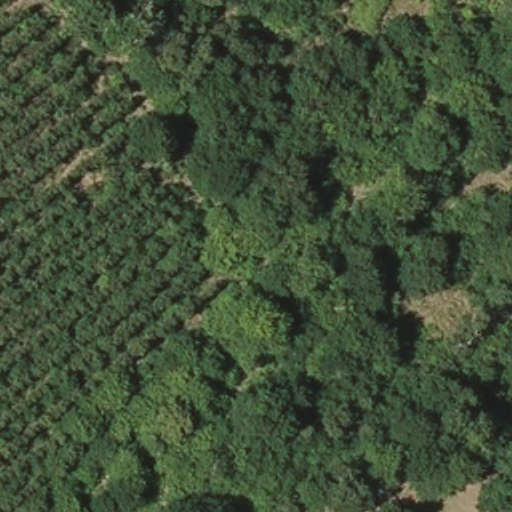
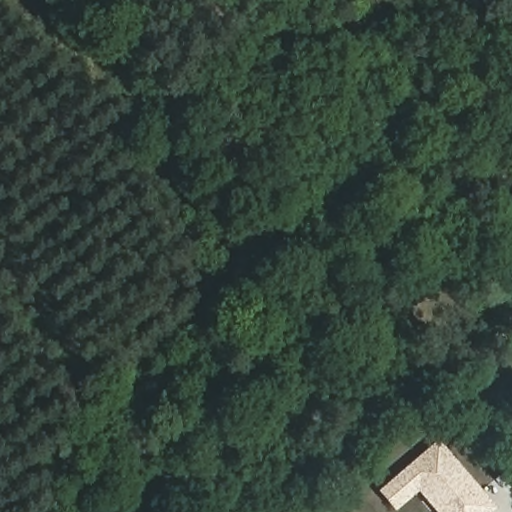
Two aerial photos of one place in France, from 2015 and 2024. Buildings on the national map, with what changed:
new [(436,512),(419,492),(397,511),(379,491),(439,439),(498,508),(493,512),(436,512)]
new [(276,512),(274,512),(275,511),(276,512)]

